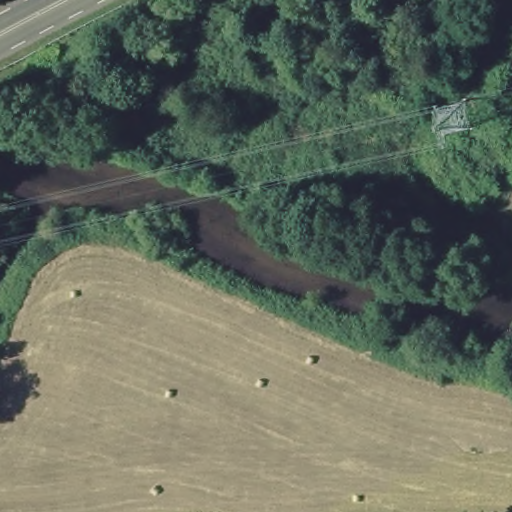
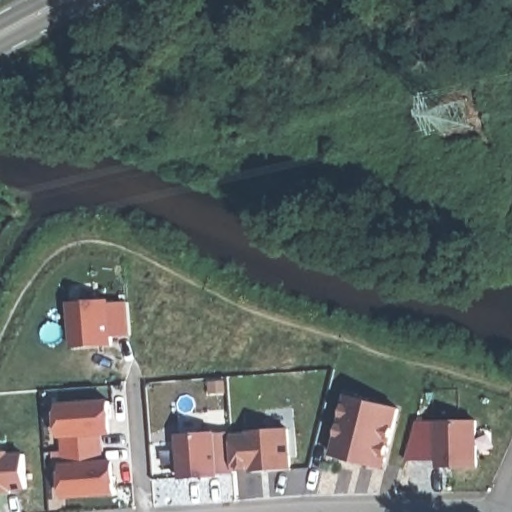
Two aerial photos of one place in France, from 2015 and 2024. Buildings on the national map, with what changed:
new [(73,304),(111,301),(111,304),(131,304),(133,334),(113,337),(113,346),(76,348),(73,304)]
new [(348,398),(400,411),(385,470),(334,457),(348,398)]
new [(116,460),(119,496),(66,500),(63,464),(66,464),(65,439),(61,440),(59,404),(112,400),(115,435),(107,436),(108,460),(116,460)]
new [(439,424),(477,423),(477,469),(440,469),(439,424)]
new [(237,474),(221,475),(221,476),(181,480),(177,436),(220,433),(235,433),(235,435),(249,434),(249,431),(290,429),(293,469),(250,474),(250,471),(237,472),(237,474)]
new [(13,493),(0,494),(0,452),(11,451),(11,454),(25,453),(28,490),(13,491),(13,493)]

